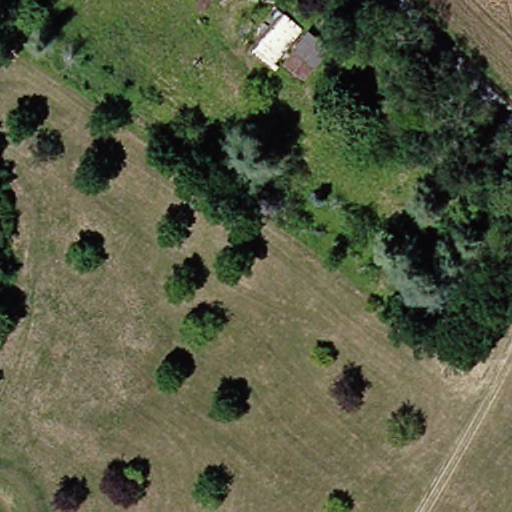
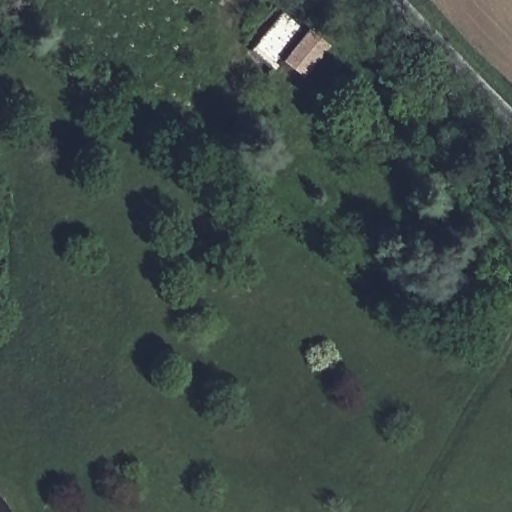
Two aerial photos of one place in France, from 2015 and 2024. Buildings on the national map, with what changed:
unchanged [(310,79),(291,62),(283,72),(257,52),(291,12),(314,32),(337,49),(310,79)]

